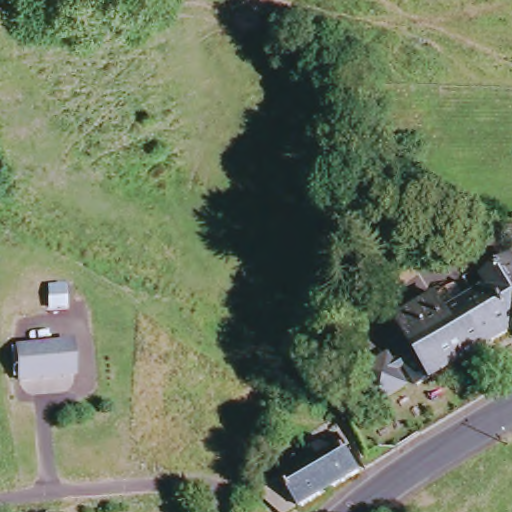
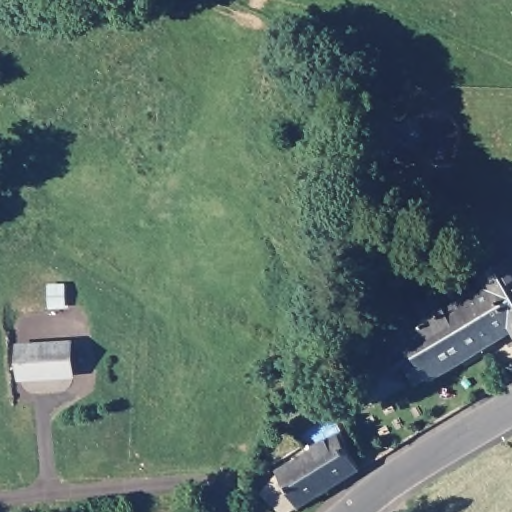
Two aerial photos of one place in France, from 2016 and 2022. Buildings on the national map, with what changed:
unchanged [(495,283),(491,276),(512,263),(512,312),(495,283)]
unchanged [(440,389),(439,386),(425,395),(413,373),(406,378),(415,394),(388,410),(375,390),(376,389),(370,379),(396,362),(403,372),(409,367),(395,345),(408,336),(397,320),(469,278),(478,294),(495,283),(512,312),(512,346),(440,389)]
unchanged [(53,375),(11,377),(10,344),(62,340),(63,361),(64,374),(53,375)]
unchanged [(327,481),(305,447),(338,426),(344,434),(361,460),(327,481)]
unchanged [(281,510),(259,489),(275,469),(273,467),(305,447),(327,481),(281,510)]

